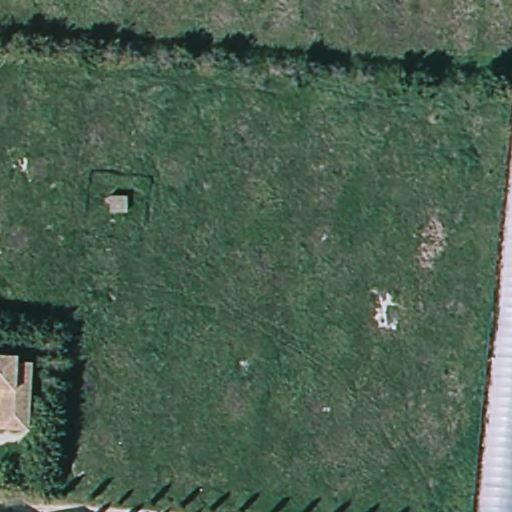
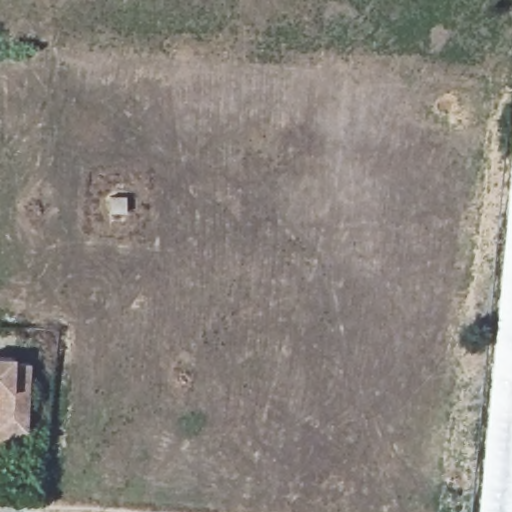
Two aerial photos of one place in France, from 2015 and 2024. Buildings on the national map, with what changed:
unchanged [(482,512),(512,194),(512,512),(482,512)]
unchanged [(16,363),(33,365),(28,431),(0,428),(0,417),(3,390),(0,390),(0,357),(16,358),(16,363)]

